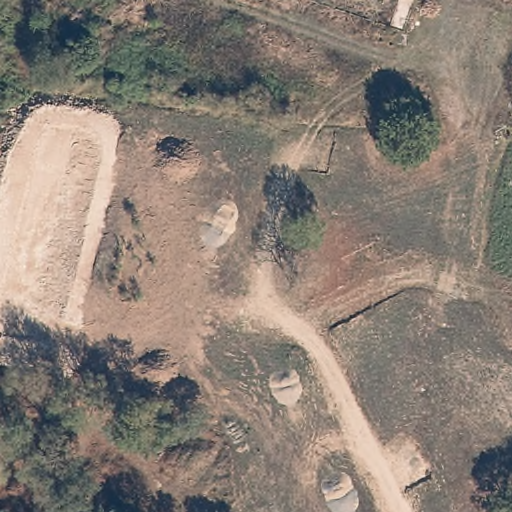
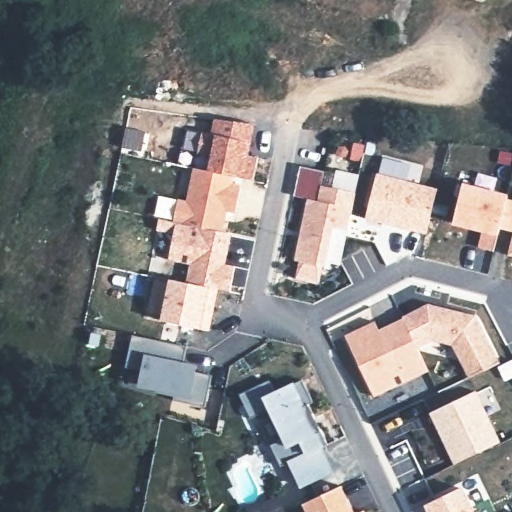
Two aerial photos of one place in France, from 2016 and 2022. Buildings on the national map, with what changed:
new [(202,132),(216,134),(219,119),(252,124),(247,155),(256,156),(252,179),(239,177),(233,176),(232,183),(239,184),(234,212),(226,211),(222,231),(231,232),(224,264),(233,265),(229,289),(217,287),(209,330),(200,328),(160,320),(161,317),(147,313),(150,299),(164,301),(169,277),(187,281),(191,263),(168,258),(173,234),(156,230),(159,218),(173,220),(177,198),(187,200),(194,168),(207,170),(211,156),(197,153),(202,132)]
new [(306,198),(317,200),(321,184),(332,186),(335,169),(357,174),(353,192),(346,229),(340,264),(326,261),(325,266),(322,266),(318,283),(295,279),(299,261),(293,260),(306,198)]
new [(377,174),(437,189),(426,234),(366,218),(377,174)]
new [(500,228),(495,250),(478,246),(482,229),(453,221),(463,182),(508,193),(507,199),(500,228)]
new [(512,200),(512,231),(500,228),(507,199),(512,200)]
new [(512,239),(512,255),(508,254),(512,239)]
new [(378,330),(402,316),(427,302),(473,315),(500,363),(470,377),(454,345),(434,339),(417,346),(428,371),(375,397),(345,335),(375,321),(378,330)]
unchanged [(206,405),(174,401),(175,395),(140,388),(142,371),(126,367),(132,335),(186,345),(181,362),(199,365),(197,371),(212,374),(206,405)]
unchanged [(301,489),(289,464),(282,468),(270,445),(283,439),(269,410),(252,417),(239,392),(270,380),(275,390),(302,379),(312,402),(305,404),(336,472),(301,489)]
new [(430,413),(476,391),(500,442),(455,464),(430,413)]
new [(354,512),(307,512),(303,503),(342,486),(354,512)]
new [(462,488),(473,512),(429,512),(426,505),(462,488)]
new [(364,512),(360,512),(363,510),(364,512)]

